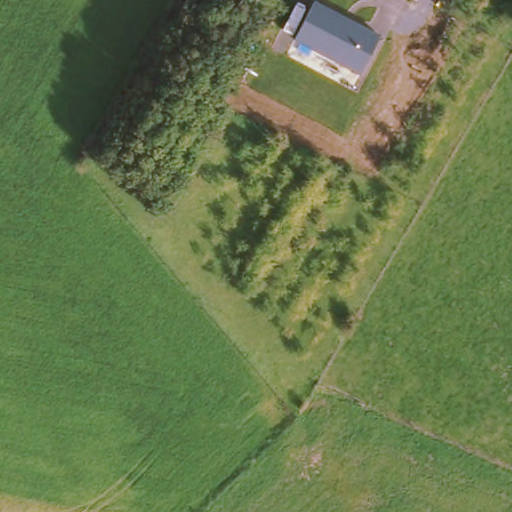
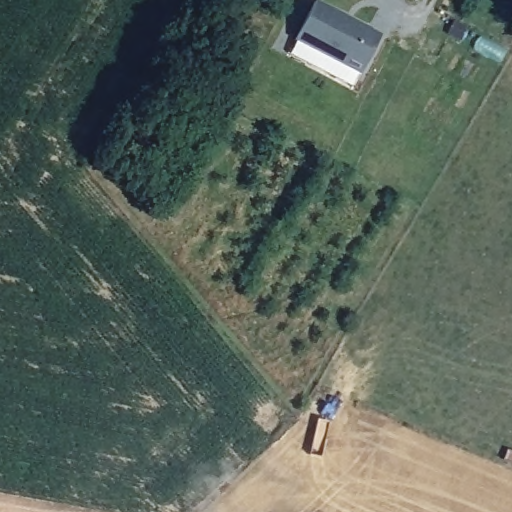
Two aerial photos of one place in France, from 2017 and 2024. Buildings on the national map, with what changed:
unchanged [(359,76),(294,40),(295,36),(283,30),(297,4),(310,9),(315,1),(380,35),(359,76)]

